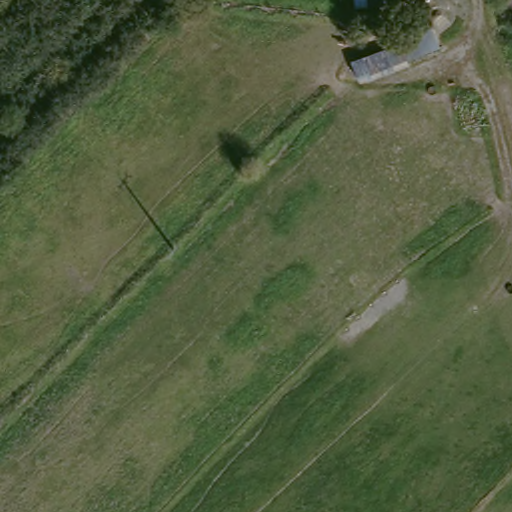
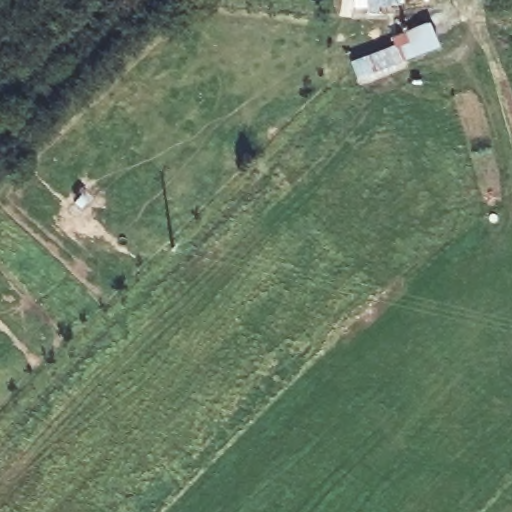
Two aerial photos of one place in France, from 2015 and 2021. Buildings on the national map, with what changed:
unchanged [(410,25),(361,25),(359,0),(412,0),(410,25)]
unchanged [(406,46),(409,62),(362,79),(355,56),(406,46)]

